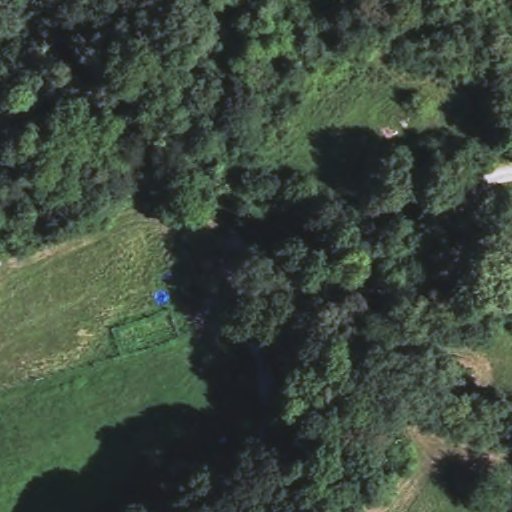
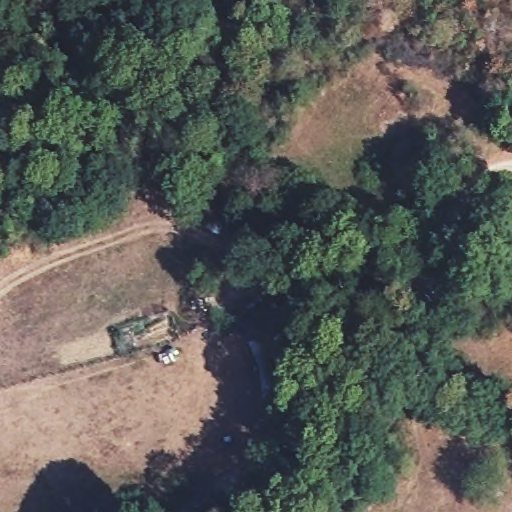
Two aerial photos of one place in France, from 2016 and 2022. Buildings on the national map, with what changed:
unchanged [(247,349),(240,335),(266,322),(282,356),(256,368),(247,349)]

